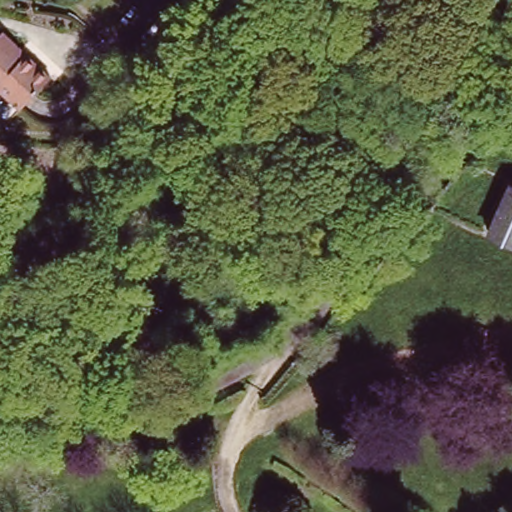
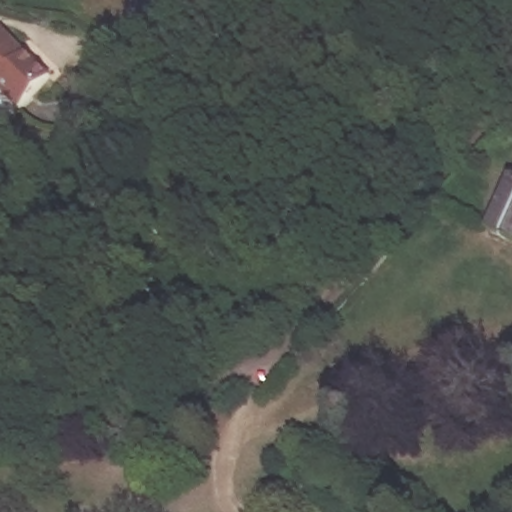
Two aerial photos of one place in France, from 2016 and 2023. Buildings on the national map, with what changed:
unchanged [(0,86),(0,38),(22,55),(26,51),(52,73),(27,107),(0,86)]
unchanged [(501,118),(512,122),(512,137),(496,130),(501,118)]
unchanged [(499,235),(512,205),(512,240),(499,235)]

